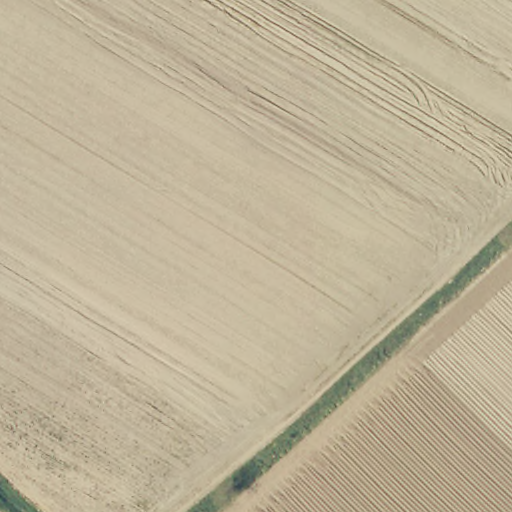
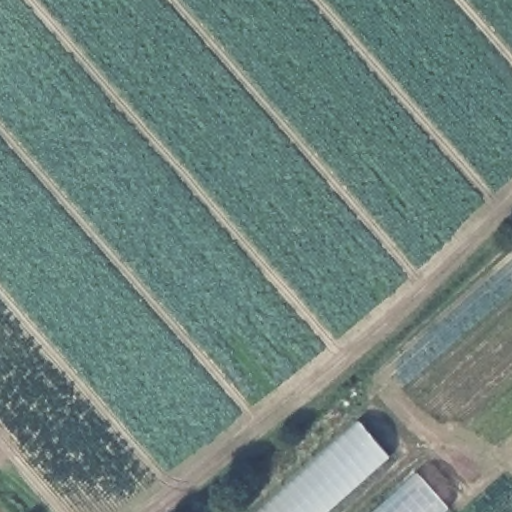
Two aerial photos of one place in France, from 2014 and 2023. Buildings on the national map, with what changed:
new [(357,425),(385,458),(323,512),(255,512),(357,425)]

